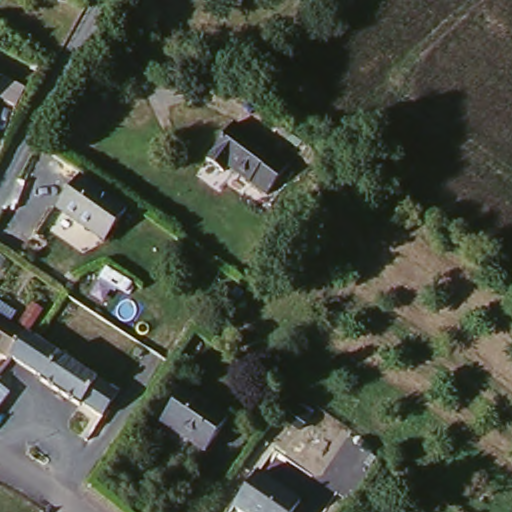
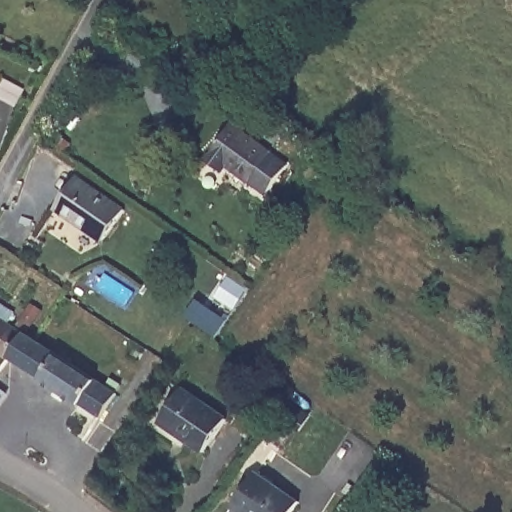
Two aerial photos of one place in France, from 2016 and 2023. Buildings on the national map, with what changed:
unchanged [(283,165),(264,190),(235,167),(228,173),(208,158),(231,126),(283,165)]
unchanged [(100,239),(51,210),(72,179),(76,174),(124,204),(120,209),(100,239)]
unchanged [(15,313),(10,322),(30,333),(13,360),(0,353),(0,304),(15,313)]
unchanged [(13,366),(30,339),(44,347),(120,391),(105,416),(13,366)]
unchanged [(7,393),(0,403),(0,389),(7,393)]
unchanged [(225,420),(204,452),(159,423),(182,391),(225,420)]
unchanged [(288,512),(242,512),(235,507),(258,475),(295,502),(288,512)]

